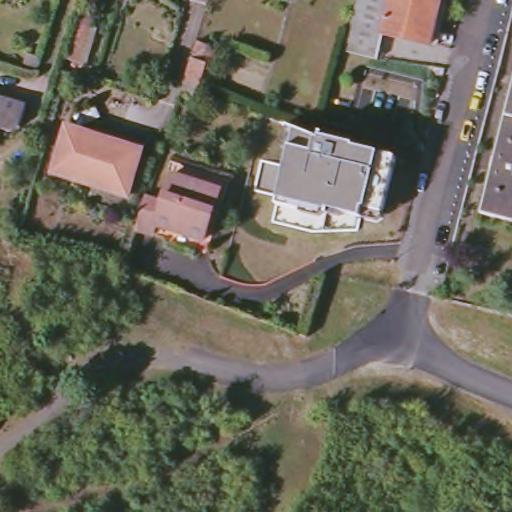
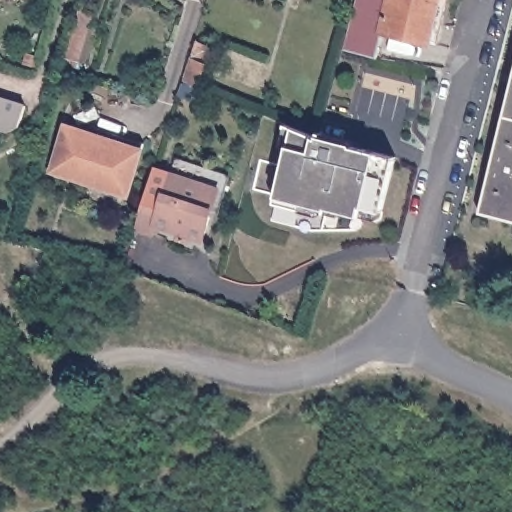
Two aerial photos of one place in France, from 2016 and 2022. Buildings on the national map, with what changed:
unchanged [(389,34),(382,59),(347,51),(361,0),(445,0),(434,45),(389,34)]
unchanged [(97,19),(81,66),(68,61),(83,13),(97,19)]
unchanged [(206,63),(198,88),(183,84),(191,57),(206,63)]
unchanged [(25,103),(18,124),(9,128),(0,126),(0,95),(25,103)]
unchanged [(512,222),(482,215),(512,100),(512,222)]
unchanged [(127,197),(51,172),(66,125),(113,140),(112,144),(141,154),(127,197)]
unchanged [(322,138),(354,147),(356,149),(379,155),(397,160),(384,215),(365,210),(363,218),(279,200),(291,147),(295,129),(322,138)]
unchanged [(208,236),(160,221),(156,231),(139,225),(149,193),(150,193),(166,199),(176,171),(223,187),(208,236)]

